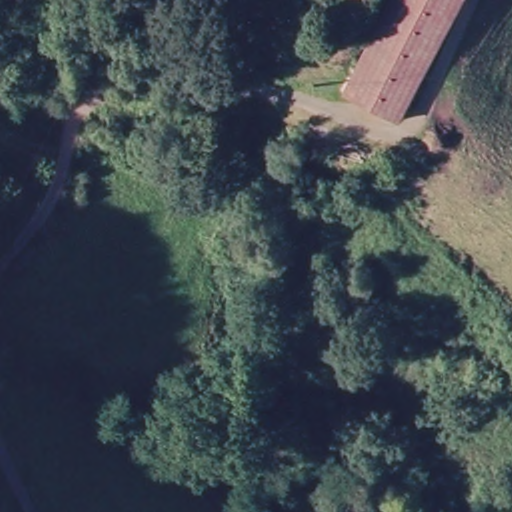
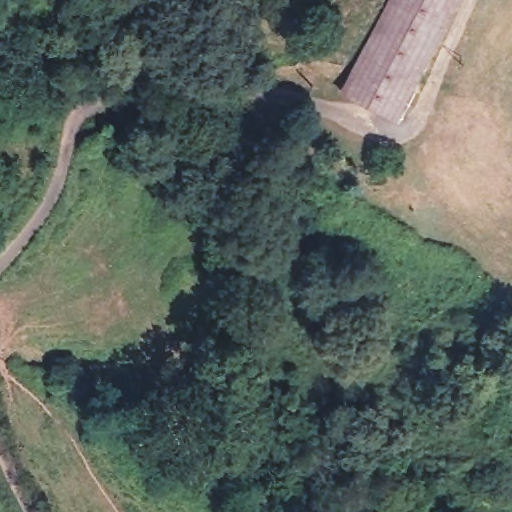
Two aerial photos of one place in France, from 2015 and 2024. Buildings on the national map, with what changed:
unchanged [(347,88),(390,0),(461,0),(399,115),(347,88)]

